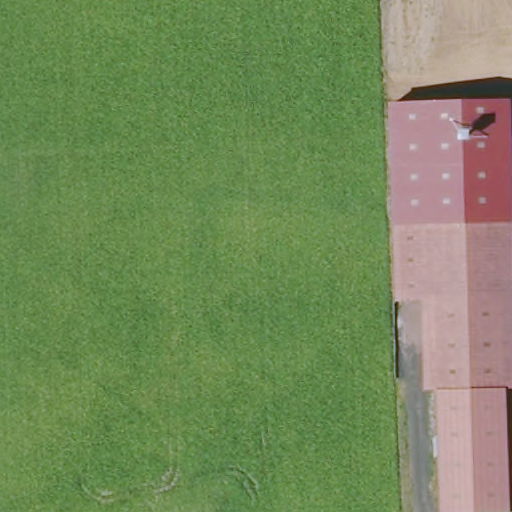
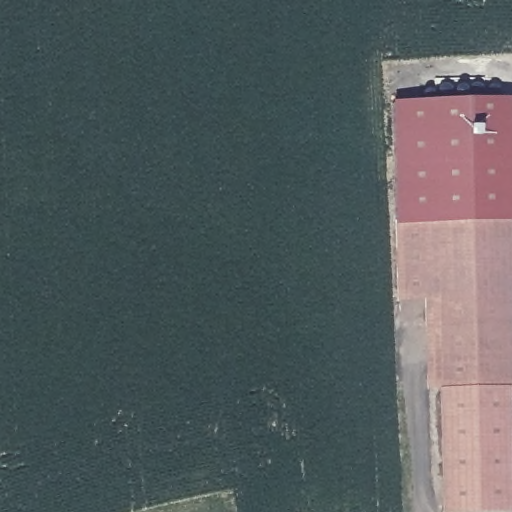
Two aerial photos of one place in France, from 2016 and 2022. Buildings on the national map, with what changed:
unchanged [(388,100),(395,100),(497,96),(501,215),(390,220),(388,100)]
unchanged [(507,383),(437,385),(433,297),(396,298),(390,220),(501,215),(507,383)]
unchanged [(511,507),(440,510),(437,385),(507,383),(511,507)]

